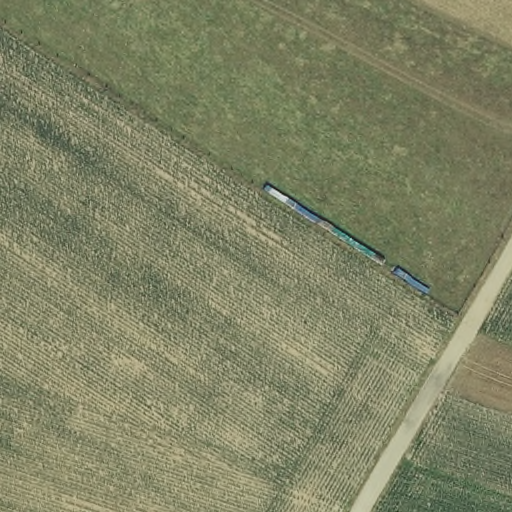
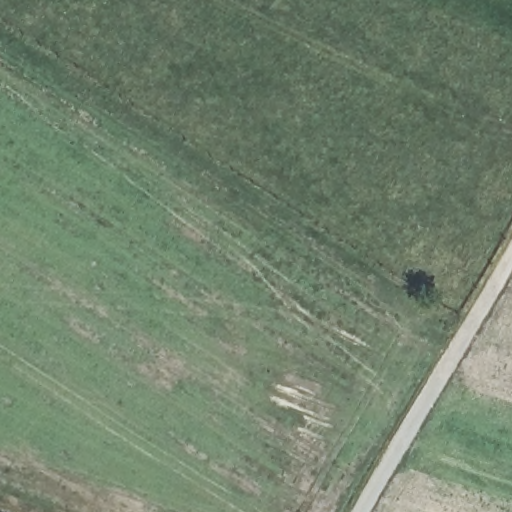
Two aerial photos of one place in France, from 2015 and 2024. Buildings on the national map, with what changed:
[]

